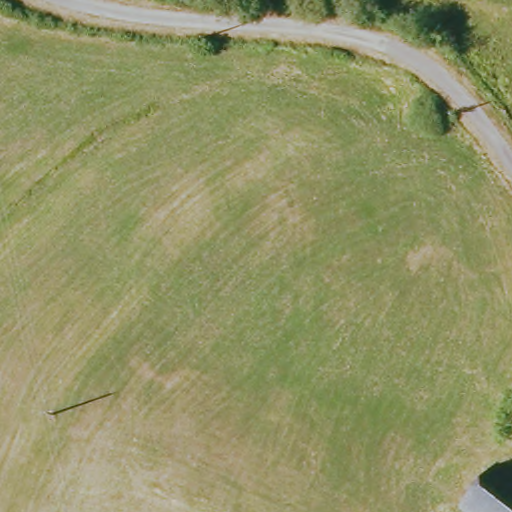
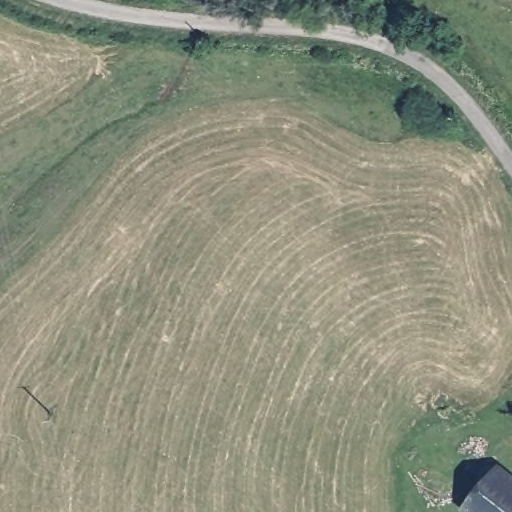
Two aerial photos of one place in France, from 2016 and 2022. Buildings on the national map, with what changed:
unchanged [(500,467),(512,477),(512,512),(468,512),(466,511),(500,467)]

